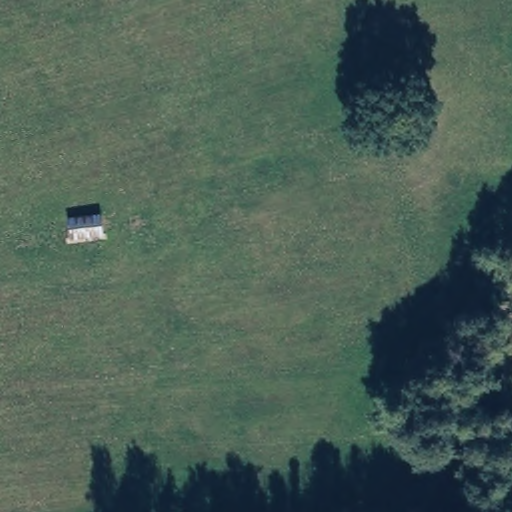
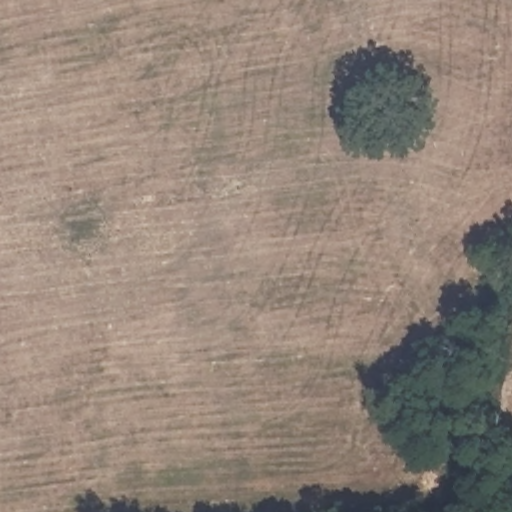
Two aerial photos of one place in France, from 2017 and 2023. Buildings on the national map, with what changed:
unchanged [(101,215),(105,235),(69,239),(67,217),(101,215)]

